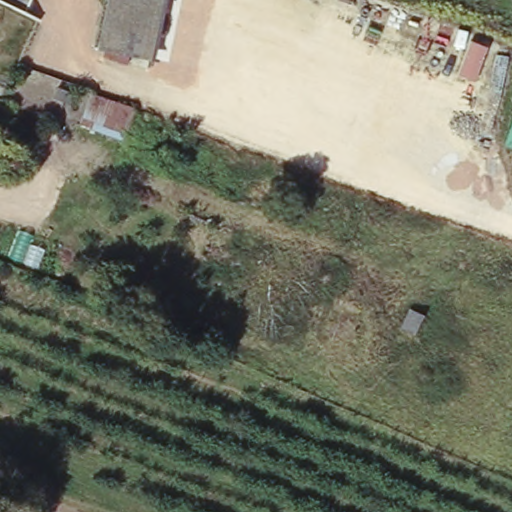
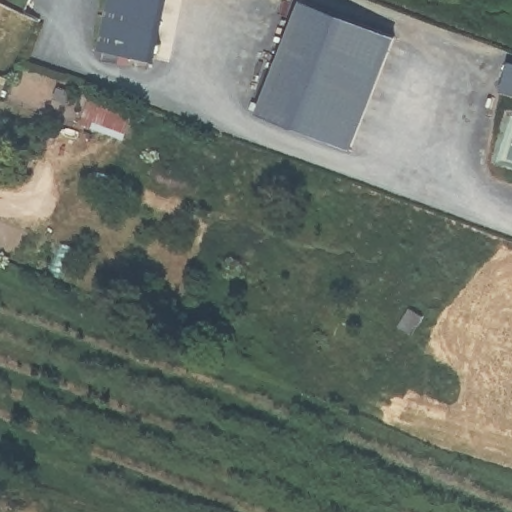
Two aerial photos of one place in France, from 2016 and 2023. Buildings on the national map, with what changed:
unchanged [(0,0),(1,0),(1,1),(0,0)]
unchanged [(96,50),(106,0),(170,0),(158,62),(96,50)]
new [(303,3),(397,37),(353,152),(260,117),(303,3)]
unchanged [(74,92),(69,105),(54,99),(59,87),(74,92)]
unchanged [(138,109),(126,139),(85,124),(95,94),(138,109)]

